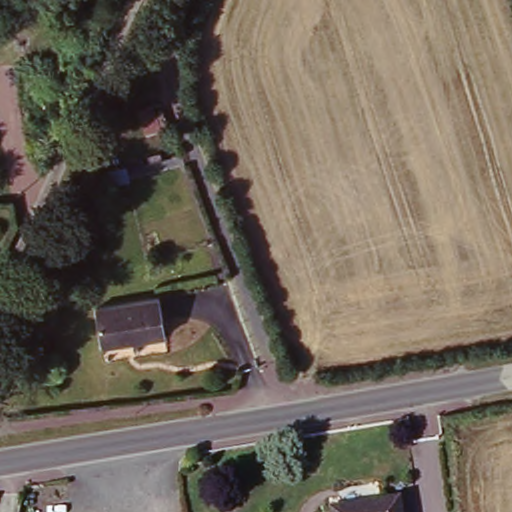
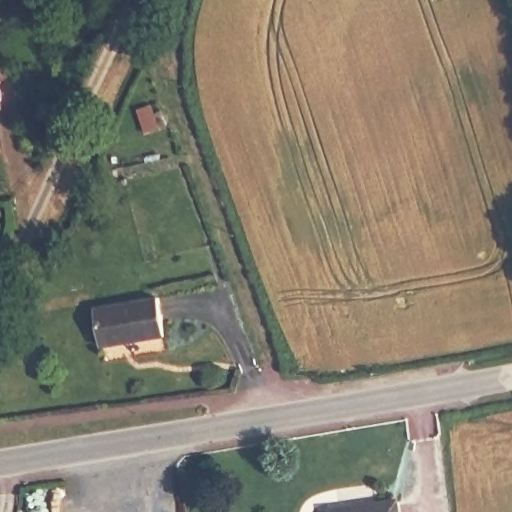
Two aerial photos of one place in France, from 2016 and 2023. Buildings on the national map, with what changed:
unchanged [(142,105),(160,101),(169,130),(150,135),(142,105)]
unchanged [(162,298),(170,332),(108,342),(101,307),(162,298)]
unchanged [(404,496),(407,512),(337,512),(335,505),(404,496)]

